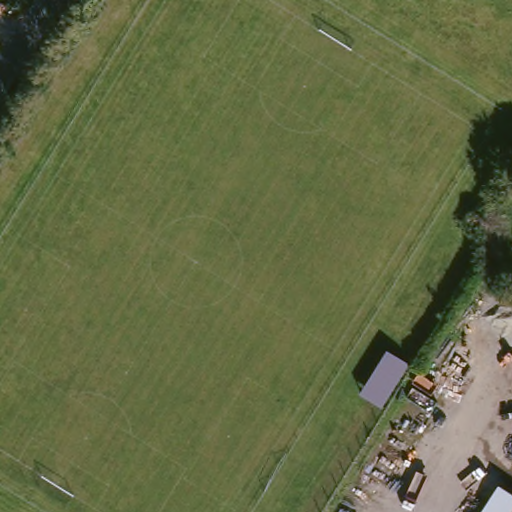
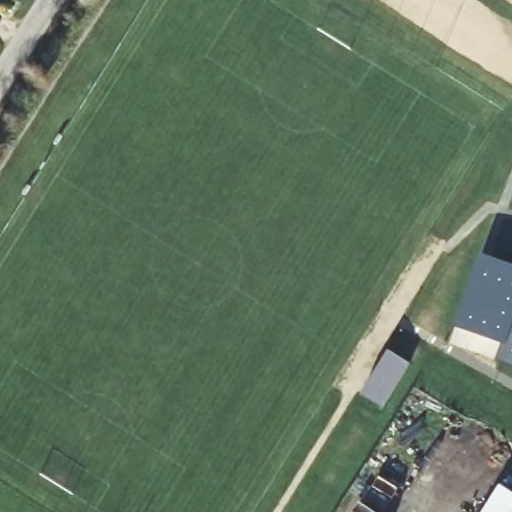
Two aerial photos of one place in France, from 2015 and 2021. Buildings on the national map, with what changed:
new [(512,265),(512,368),(494,362),(501,344),(454,327),(479,255),(512,265)]
unchanged [(406,368),(377,412),(356,399),(384,355),(406,368)]
unchanged [(512,501),(512,512),(480,512),(495,490),(512,501)]

